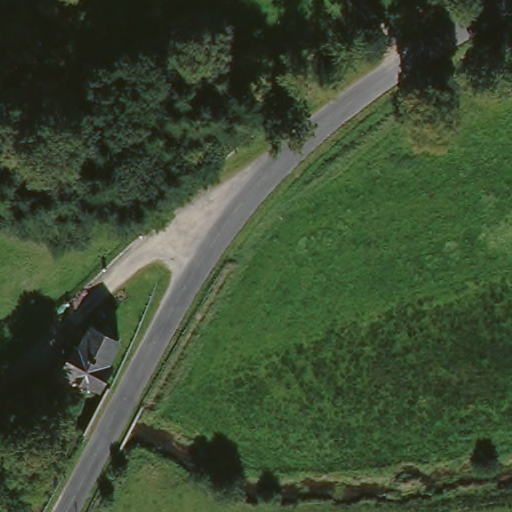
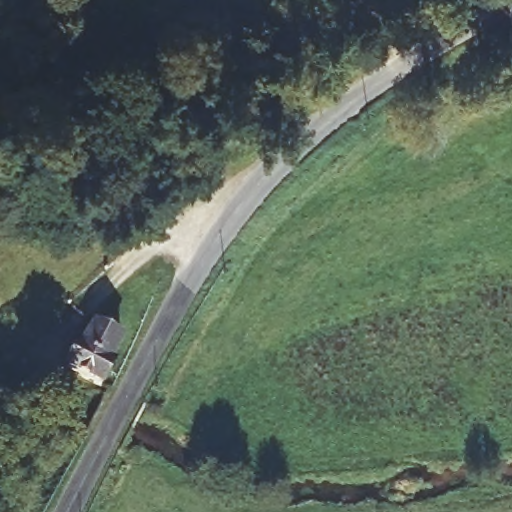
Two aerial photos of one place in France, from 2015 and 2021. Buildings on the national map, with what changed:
unchanged [(113,372),(100,393),(62,371),(75,349),(81,351),(94,330),(99,333),(104,325),(114,332),(109,340),(117,345),(105,366),(113,372)]

